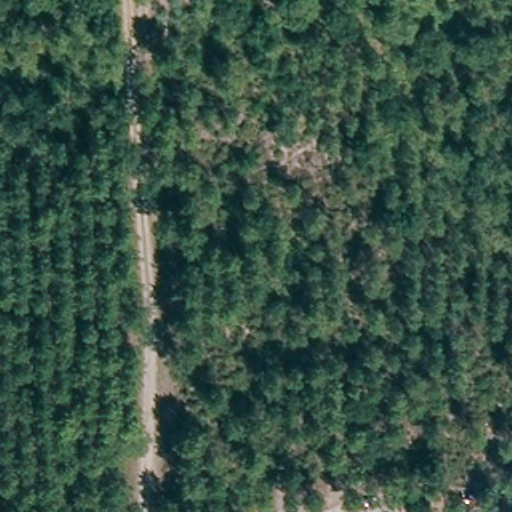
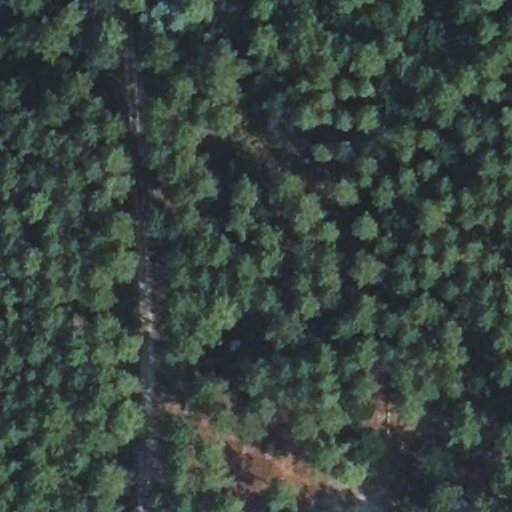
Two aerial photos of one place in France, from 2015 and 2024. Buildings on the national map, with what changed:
[]

